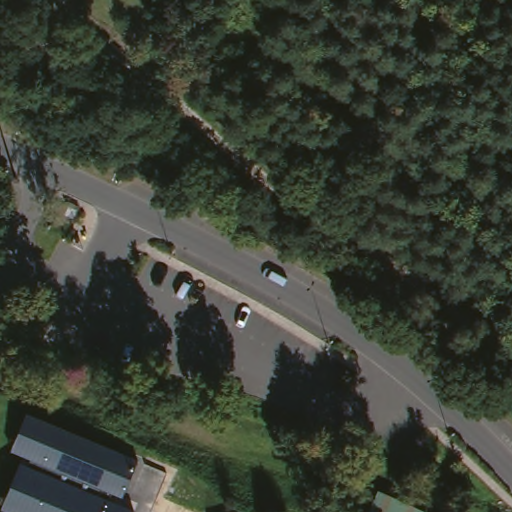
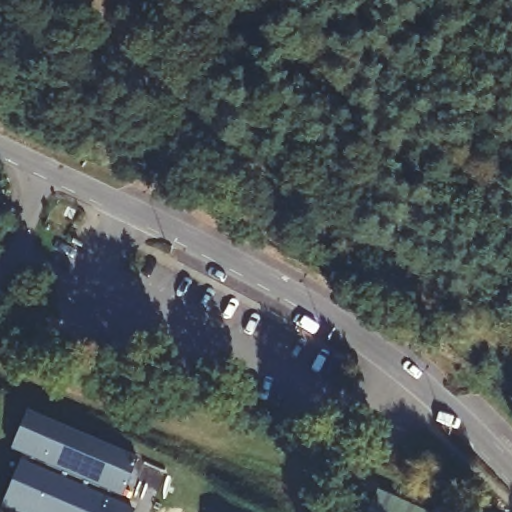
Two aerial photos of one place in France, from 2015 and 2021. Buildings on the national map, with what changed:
unchanged [(19,466),(25,467),(31,458),(11,448),(25,417),(135,462),(122,493),(107,489),(104,500),(135,512),(8,512),(0,509),(0,505),(19,466)]
unchanged [(437,512),(372,512),(384,486),(437,512)]

